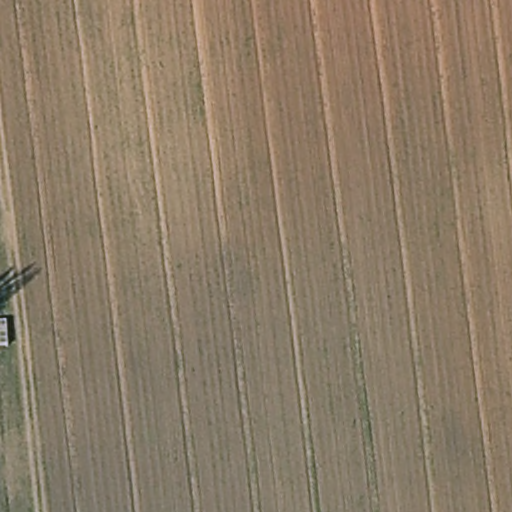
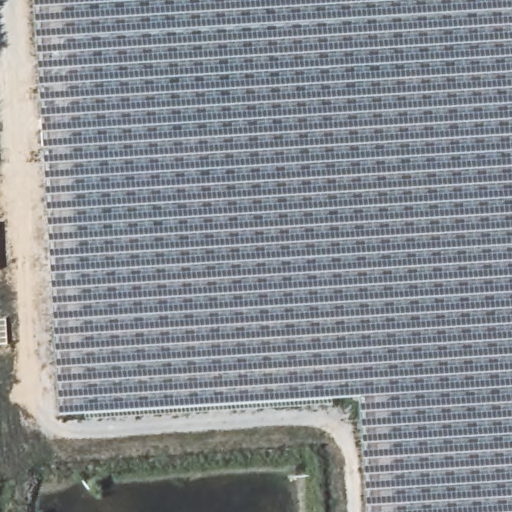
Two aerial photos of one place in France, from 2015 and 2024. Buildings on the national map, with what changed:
new [(369,512),(362,398),(63,415),(36,0),(512,0),(512,512),(369,512)]
demolished [(14,349),(0,350),(0,322),(13,321),(14,349)]

